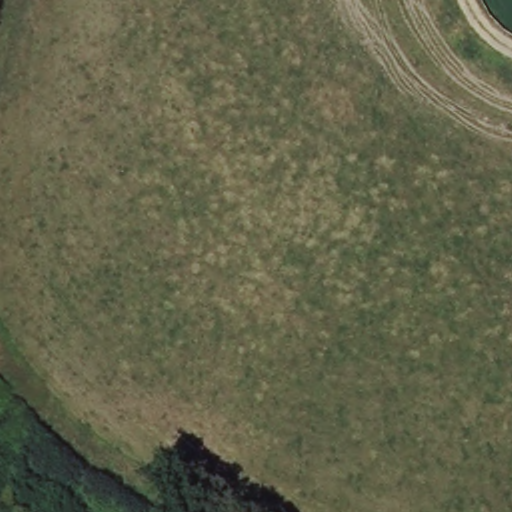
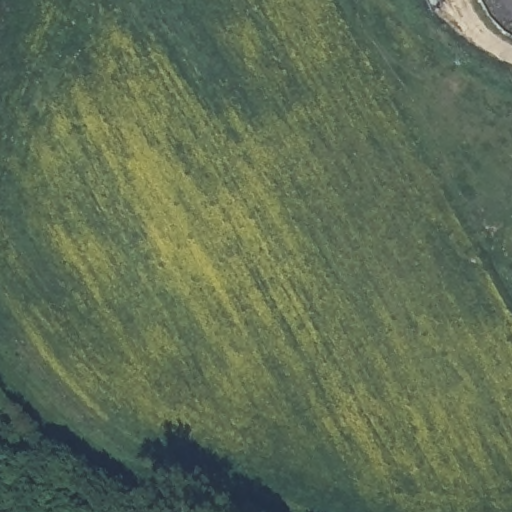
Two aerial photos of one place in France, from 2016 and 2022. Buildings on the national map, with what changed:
[]

